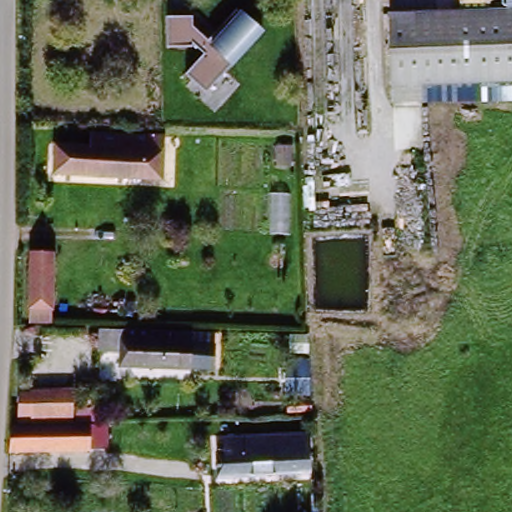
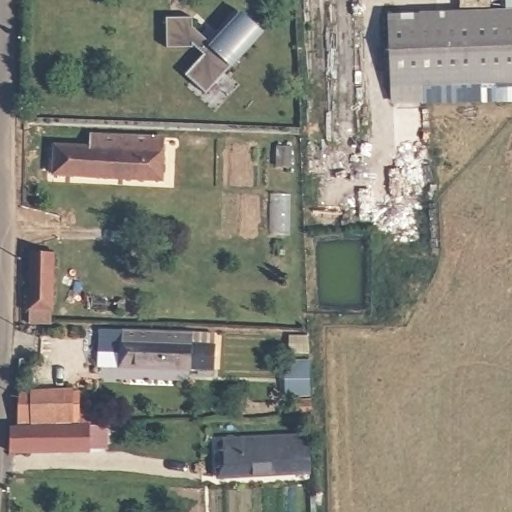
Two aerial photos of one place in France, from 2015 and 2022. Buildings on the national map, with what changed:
unchanged [(389,12),(512,5),(512,101),(392,104),(389,12)]
unchanged [(186,75),(204,52),(193,42),(193,46),(166,47),(166,17),(193,17),(193,27),(211,42),(243,10),(264,31),(206,93),(186,75)]
unchanged [(166,155),(164,185),(56,179),(58,150),(75,151),(76,135),(96,137),(119,139),(166,141),(166,155)]
unchanged [(45,325),(28,325),(29,260),(46,261),(45,325)]
unchanged [(120,290),(119,303),(102,301),(103,289),(120,290)]
unchanged [(129,371),(128,365),(121,363),(103,361),(104,342),(123,342),(123,333),(193,337),(193,348),(193,376),(129,371)]
unchanged [(74,422),(33,422),(34,395),(75,392),(74,422)]
unchanged [(89,429),(90,440),(78,440),(78,455),(11,457),(13,430),(78,430),(89,429)]
unchanged [(311,445),(311,477),(224,483),(223,458),(228,458),(228,448),(311,445)]

